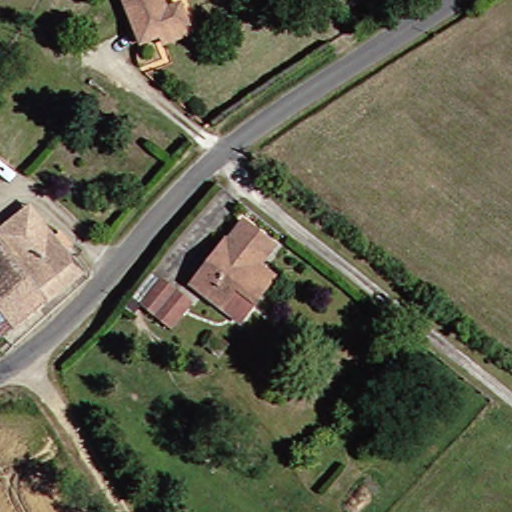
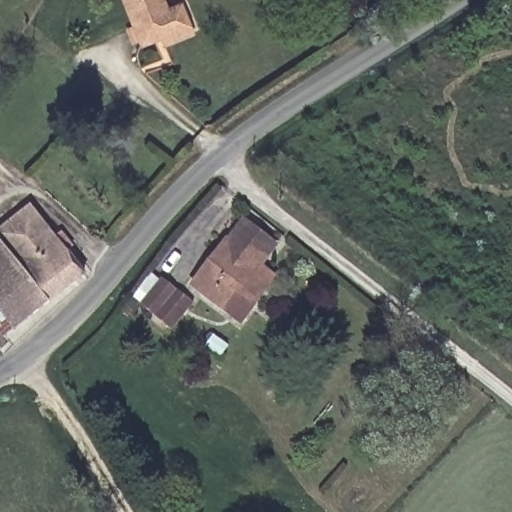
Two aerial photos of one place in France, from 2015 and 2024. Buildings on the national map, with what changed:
unchanged [(172,38),(146,48),(125,0),(172,0),(174,5),(183,0),(196,0),(205,21),(205,22),(209,29),(175,44),(172,38)]
unchanged [(27,321),(14,301),(19,292),(0,269),(0,228),(17,213),(29,224),(74,282),(27,321)]
unchanged [(270,282),(230,328),(192,295),(185,287),(198,272),(224,242),(270,282)]
unchanged [(9,333),(0,322),(0,269),(19,292),(14,301),(27,321),(9,333)]
unchanged [(156,326),(130,303),(149,280),(176,303),(156,326)]

